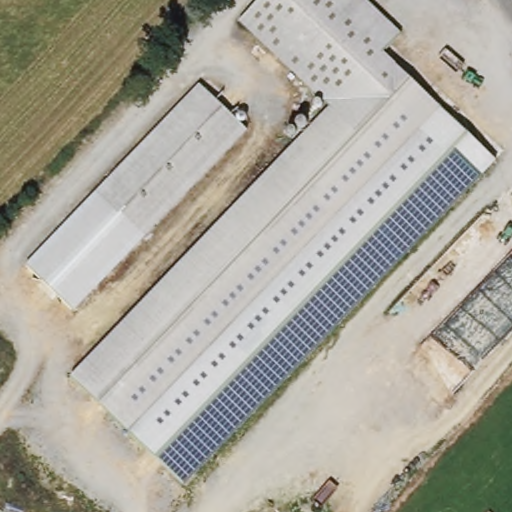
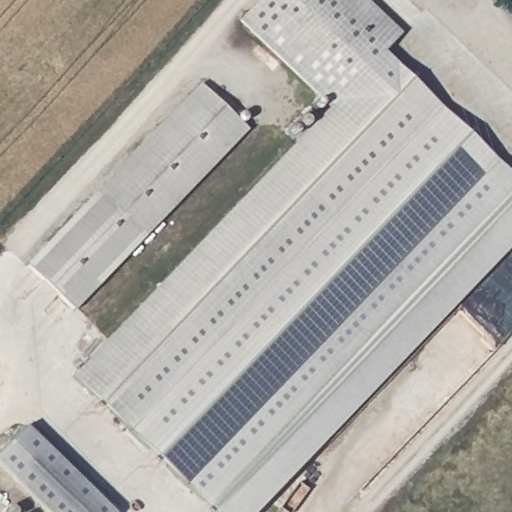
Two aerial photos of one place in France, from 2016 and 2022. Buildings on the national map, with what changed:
unchanged [(383,53),(441,107),(128,434),(70,378),(329,107),(239,21),(259,0),(366,0),(401,34),(383,53)]
unchanged [(143,241),(93,194),(199,85),(248,132),(143,241)]
unchanged [(441,107),(498,162),(184,486),(128,434),(441,107)]
new [(257,512),(212,512),(184,486),(498,162),(512,175),(512,244),(257,512)]
unchanged [(143,241),(73,311),(26,266),(93,194),(143,241)]
new [(0,453),(26,427),(112,512),(43,512),(0,470),(0,453)]

